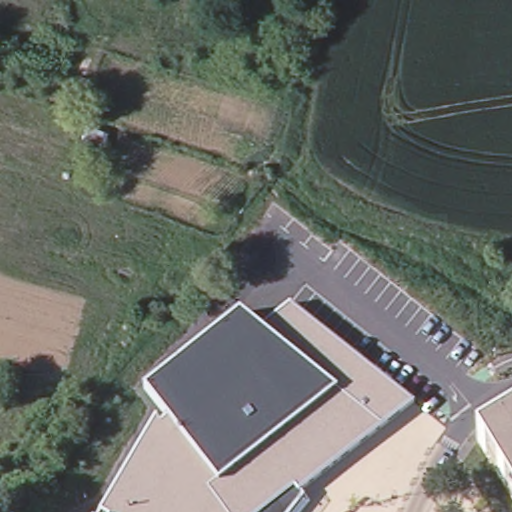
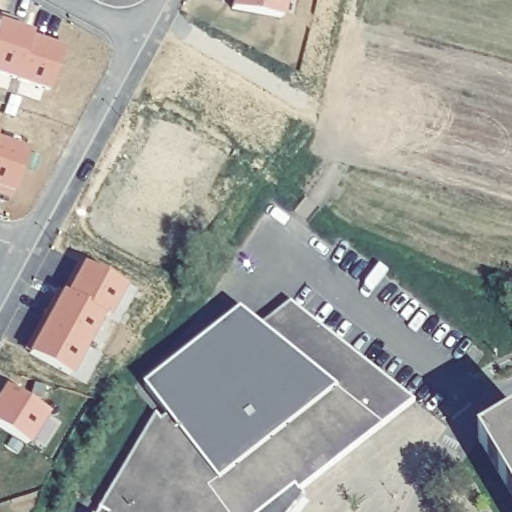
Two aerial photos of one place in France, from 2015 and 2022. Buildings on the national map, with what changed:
new [(235,2),(235,0),(289,0),(288,11),(235,2)]
new [(62,42),(52,84),(0,67),(0,27),(3,18),(62,42)]
new [(1,129),(0,135),(0,128),(1,129)]
new [(29,145),(15,196),(0,192),(0,135),(29,145)]
new [(127,281),(113,312),(107,308),(77,371),(32,347),(67,287),(73,291),(87,260),(127,281)]
unchanged [(404,405),(302,487),(297,481),(261,512),(99,512),(155,417),(162,423),(170,418),(147,388),(164,376),(158,367),(209,327),(218,334),(243,311),(261,325),(290,303),(412,400),(404,405)]
new [(26,447),(0,431),(0,397),(5,390),(9,392),(46,415),(26,447)]
unchanged [(512,426),(512,492),(483,443),(512,426)]

